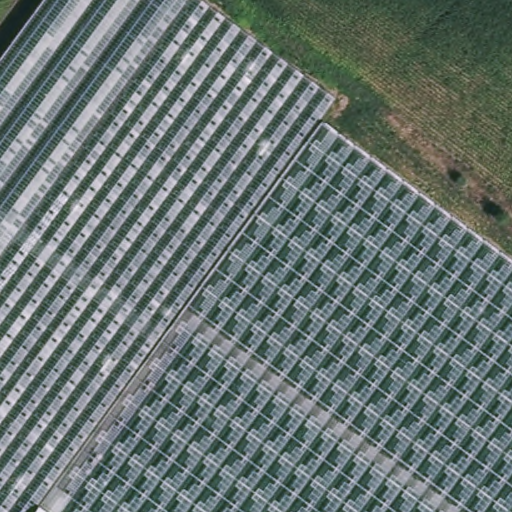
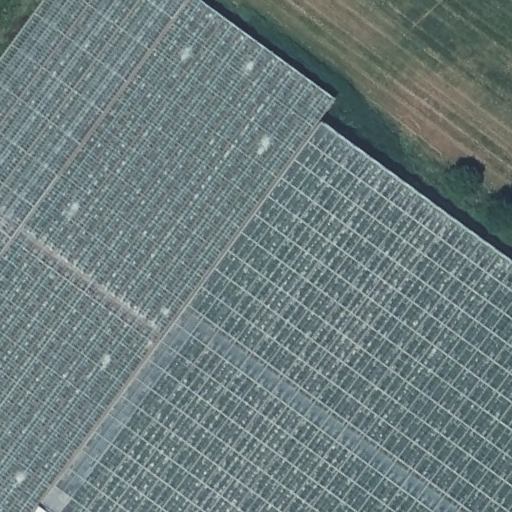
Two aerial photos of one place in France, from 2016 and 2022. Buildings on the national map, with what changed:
unchanged [(25,0),(210,0),(322,82),(308,105),(512,252),(512,512),(0,512),(0,35),(25,0)]

